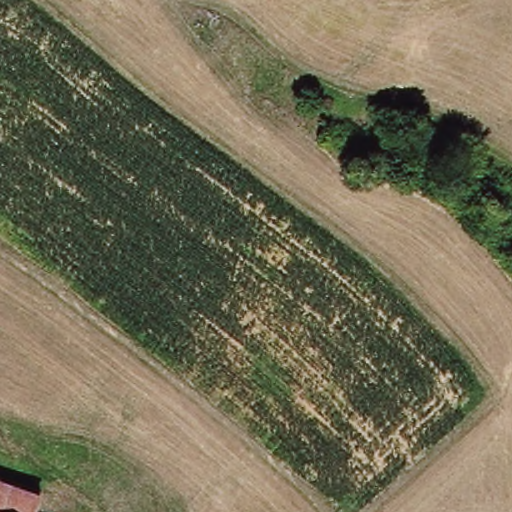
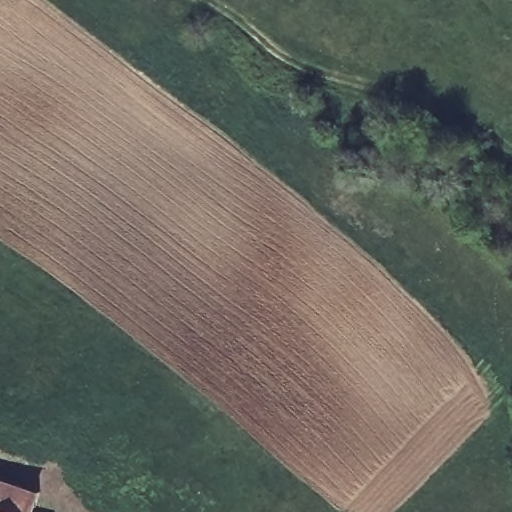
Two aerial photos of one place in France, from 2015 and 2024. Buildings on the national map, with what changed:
unchanged [(0,473),(8,477),(0,493),(0,473)]
unchanged [(0,501),(0,493),(8,477),(49,496),(42,512),(21,512),(3,502),(0,501)]
unchanged [(21,512),(0,512),(0,509),(3,502),(21,512)]

